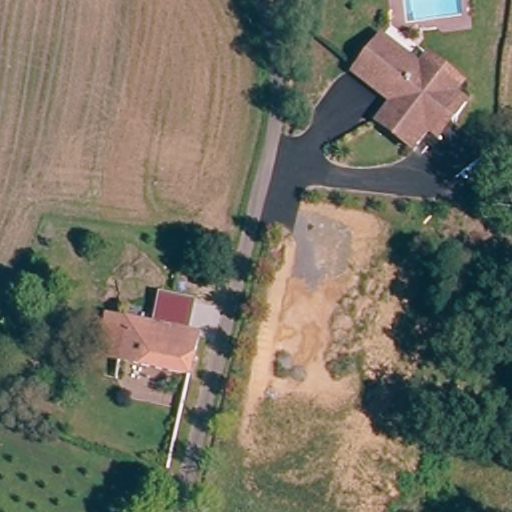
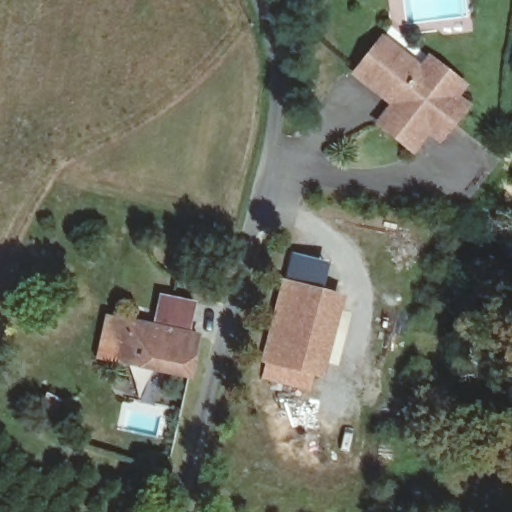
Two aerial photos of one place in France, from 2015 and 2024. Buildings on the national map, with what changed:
unchanged [(426,75),(433,111),(421,126),(407,146),(372,119),(383,103),(381,97),(347,71),(373,35),(415,65),(426,75)]
unchanged [(423,55),(457,80),(453,87),(455,95),(461,99),(434,135),(421,126),(433,111),(426,75),(415,65),(423,55)]
new [(265,360),(284,279),(347,293),(325,379),(265,360)]
unchanged [(156,326),(157,321),(164,296),(195,305),(189,327),(188,335),(199,337),(189,377),(122,360),(118,358),(98,353),(108,314),(129,320),(131,320),(156,326)]

